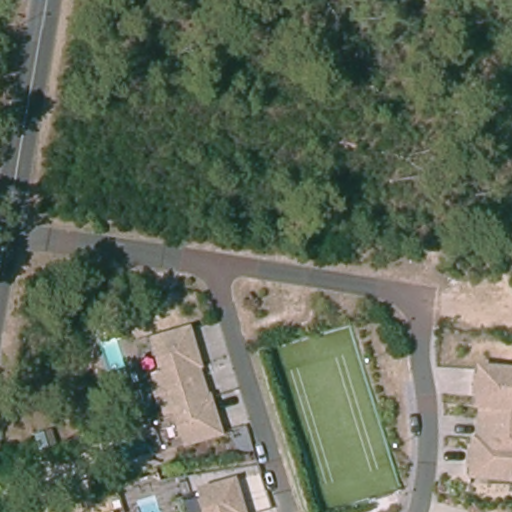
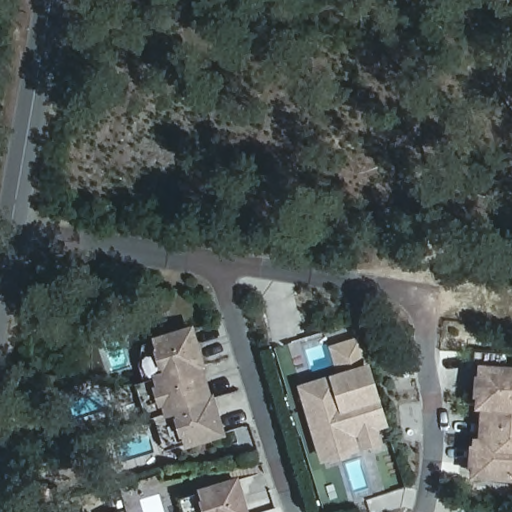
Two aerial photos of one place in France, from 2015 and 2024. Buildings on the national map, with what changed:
unchanged [(190,322),(204,368),(201,369),(208,391),(212,391),(223,434),(161,448),(151,417),(161,414),(158,406),(154,407),(148,384),(151,383),(150,376),(137,381),(141,348),(151,345),(149,336),(190,322)]
new [(364,361),(335,370),(328,345),(357,336),(364,361)]
new [(354,446),(316,458),(293,383),(364,361),(383,424),(350,433),(354,446)]
unchanged [(470,443),(469,435),(476,435),(478,407),(471,406),(474,362),(512,365),(512,483),(466,479),(468,445),(470,443)]
new [(378,440),(358,446),(354,433),(373,426),(378,440)]
unchanged [(196,492),(195,487),(236,475),(248,512),(183,512),(178,496),(196,492)]

